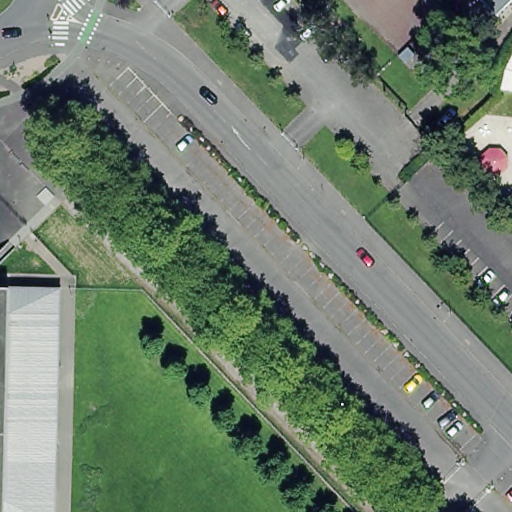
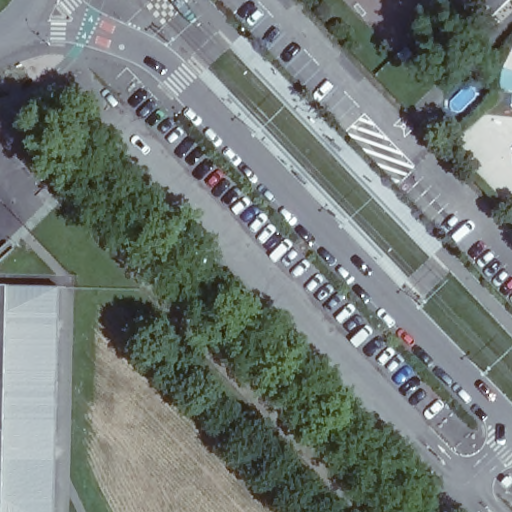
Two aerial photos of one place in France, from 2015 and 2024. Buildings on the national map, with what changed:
unchanged [(493,13),(481,0),(507,0),(493,13)]
unchanged [(505,66),(509,55),(512,50),(512,91),(499,90),(505,66)]
unchanged [(14,246),(0,261),(0,247),(8,240),(14,246)]
unchanged [(59,286),(58,320),(54,512),(0,512),(0,285),(18,285),(59,286)]

